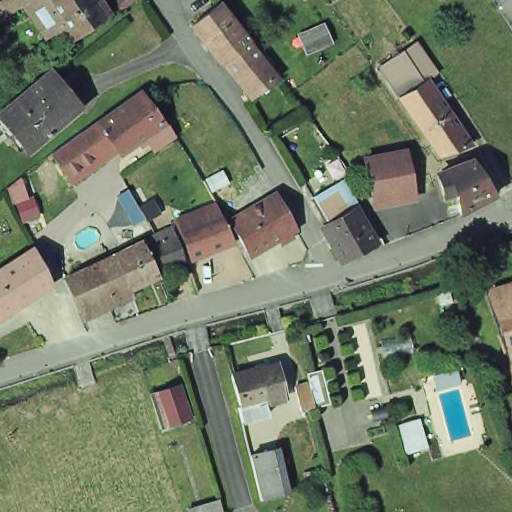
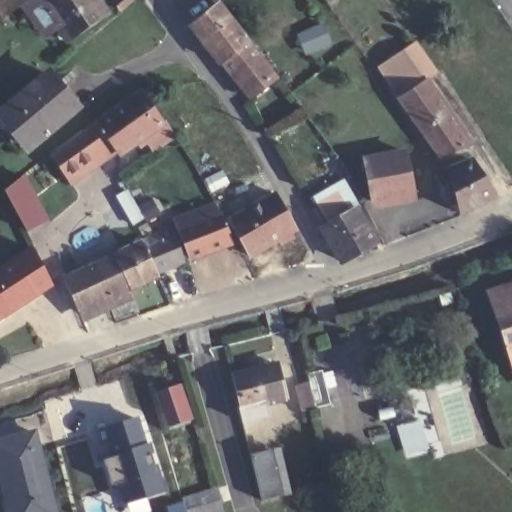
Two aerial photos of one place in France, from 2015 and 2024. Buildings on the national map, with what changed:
unchanged [(17,0),(4,8),(0,10),(0,0),(17,0)]
unchanged [(45,0),(49,0),(46,2),(45,0)]
unchanged [(102,0),(107,9),(66,35),(46,2),(49,0),(102,0)]
unchanged [(132,0),(118,11),(112,5),(118,0),(132,0)]
demolished [(512,6),(511,4),(512,4),(512,6)]
unchanged [(212,8),(239,41),(213,62),(185,29),(212,8)]
unchanged [(446,62),(424,83),(473,146),(433,157),(367,65),(415,30),(446,62)]
unchanged [(213,62),(239,41),(267,77),(244,95),(220,65),(217,67),(213,62)]
unchanged [(2,117),(50,77),(77,110),(30,150),(2,117)]
unchanged [(68,152),(65,155),(60,148),(92,125),(134,94),(156,125),(113,155),(107,145),(78,166),(68,152)]
unchanged [(403,190),(367,196),(360,157),(400,149),(406,180),(403,190)]
unchanged [(491,192),(455,209),(451,186),(440,191),(431,172),(470,156),(491,192)]
unchanged [(205,175),(223,165),(238,191),(220,201),(205,175)]
unchanged [(39,216),(21,222),(15,203),(12,204),(6,187),(20,177),(28,199),(32,197),(39,216)]
unchanged [(145,220),(135,205),(130,196),(148,185),(153,194),(162,209),(145,220)]
unchanged [(313,199),(340,185),(357,211),(375,244),(340,262),(320,231),(328,226),(313,199)]
unchanged [(229,217),(276,190),(295,225),(248,251),(229,217)]
unchanged [(178,227),(212,214),(220,211),(220,213),(231,240),(222,243),(190,255),(178,227)]
unchanged [(156,272),(140,242),(147,239),(153,235),(167,226),(182,252),(185,257),(156,272)]
unchanged [(127,287),(112,255),(140,242),(156,272),(157,274),(127,287)]
unchanged [(0,318),(0,271),(31,250),(50,285),(0,318)]
unchanged [(63,276),(112,255),(127,287),(76,309),(63,276)]
unchanged [(177,280),(187,276),(195,297),(185,301),(177,280)]
unchanged [(512,299),(512,361),(493,305),(512,299)]
unchanged [(241,421),(238,409),(231,376),(278,365),(286,397),(263,402),(266,415),(241,421)]
unchanged [(295,388),(309,384),(307,375),(318,372),(327,403),(315,407),(305,410),(302,410),(295,388)]
unchanged [(160,405),(155,407),(151,395),(180,386),(190,420),(168,427),(160,405)]
new [(141,416),(146,445),(154,442),(167,491),(122,503),(105,430),(141,416)]
unchanged [(417,423),(424,449),(409,453),(402,427),(417,423)]
new [(0,481),(0,437),(36,428),(57,512),(8,512),(0,481)]
unchanged [(287,494),(262,502),(250,457),(275,451),(287,494)]

